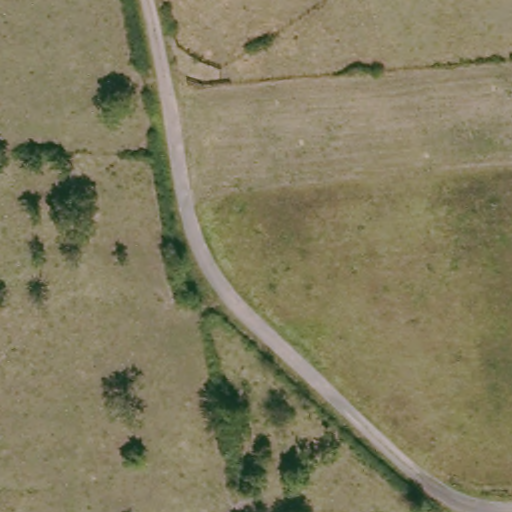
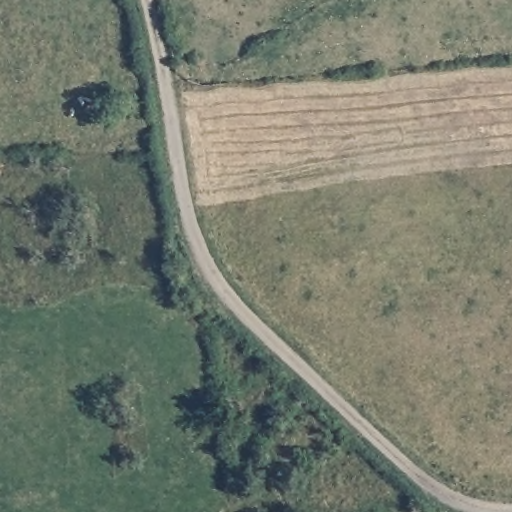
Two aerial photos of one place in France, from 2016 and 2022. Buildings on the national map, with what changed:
[]

